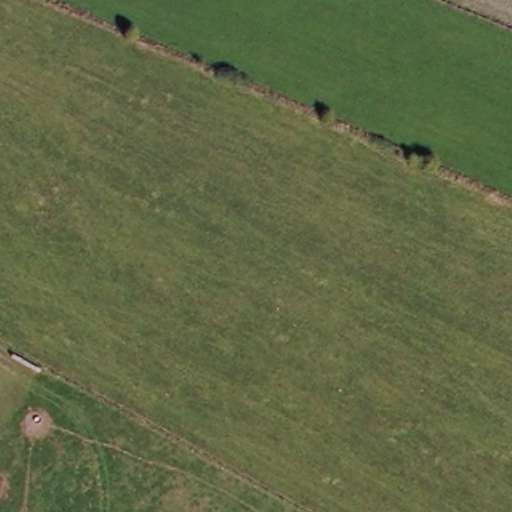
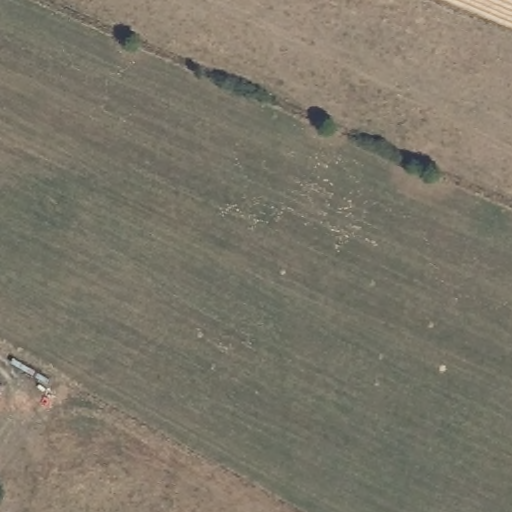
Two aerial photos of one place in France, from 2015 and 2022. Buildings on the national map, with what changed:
[]

